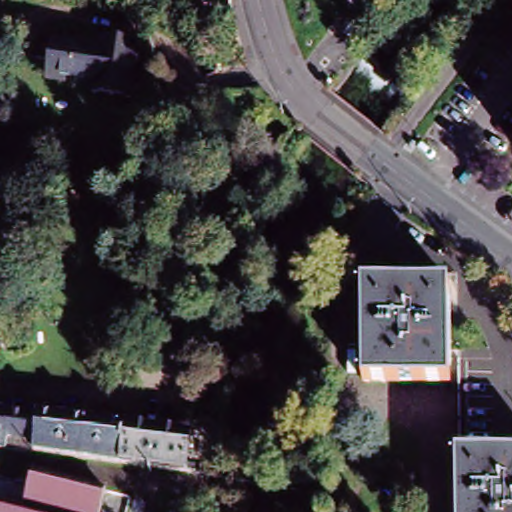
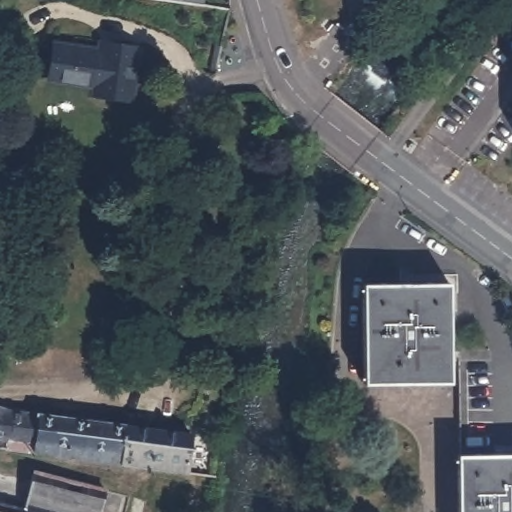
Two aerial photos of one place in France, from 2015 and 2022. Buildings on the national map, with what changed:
unchanged [(6,14),(0,14),(0,0),(8,0),(6,14)]
unchanged [(208,1),(196,0),(208,0),(208,1)]
unchanged [(134,96),(93,90),(94,82),(51,76),(56,40),(100,46),(101,36),(141,42),(134,96)]
unchanged [(440,385),(359,383),(361,288),(443,290),(440,385)]
unchanged [(460,451),(463,376),(487,377),(485,452),(460,451)]
unchanged [(187,469),(121,459),(72,451),(0,441),(0,410),(124,429),(189,440),(185,464),(191,464),(191,469),(187,469)]
unchanged [(457,512),(460,451),(485,452),(512,453),(512,512),(457,512)]
unchanged [(103,512),(0,512),(0,469),(15,471),(107,494),(103,512)]
unchanged [(135,512),(103,512),(107,494),(138,502),(135,512)]

